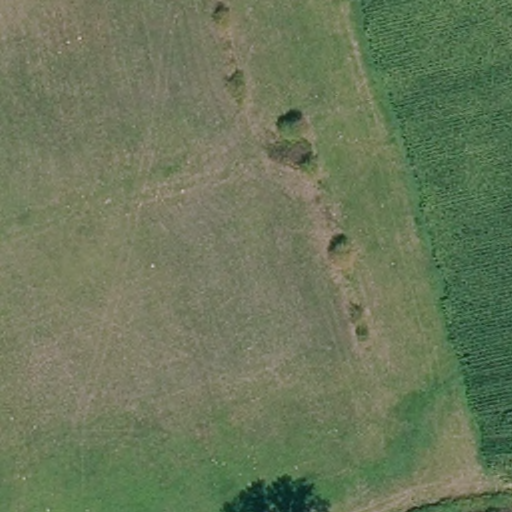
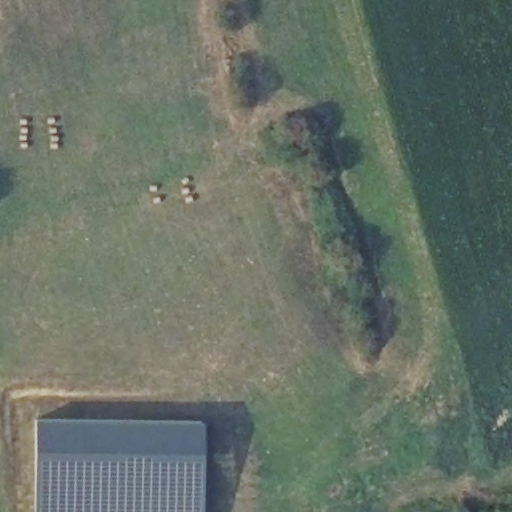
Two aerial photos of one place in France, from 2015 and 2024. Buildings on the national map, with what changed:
new [(204,418),(203,512),(34,512),(36,417),(204,418)]

